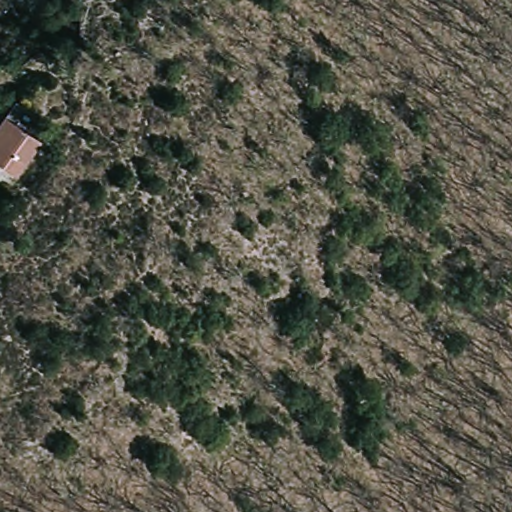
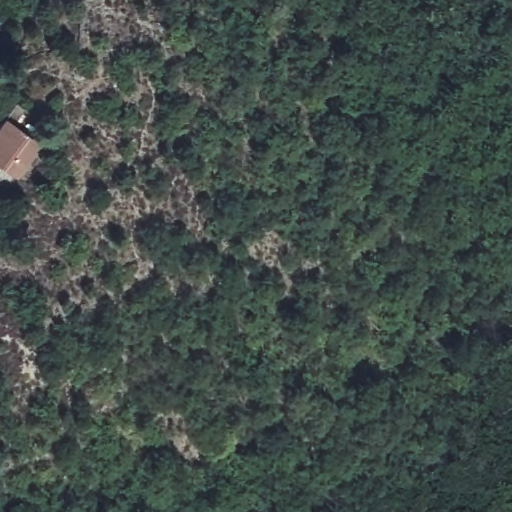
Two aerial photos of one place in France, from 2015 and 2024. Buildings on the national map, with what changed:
unchanged [(10,112),(44,138),(16,171),(0,159),(0,125),(10,112)]
unchanged [(3,219),(0,221),(0,214),(3,219)]

